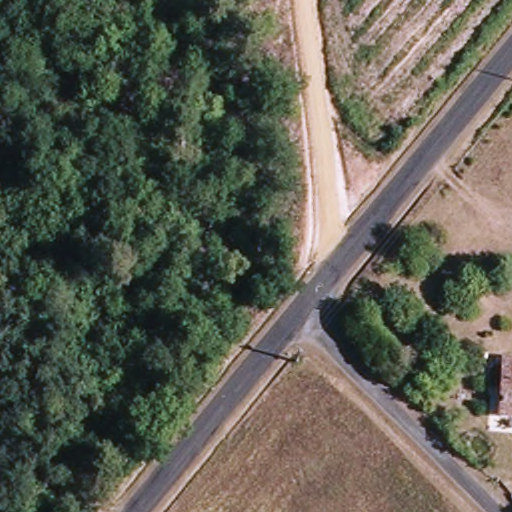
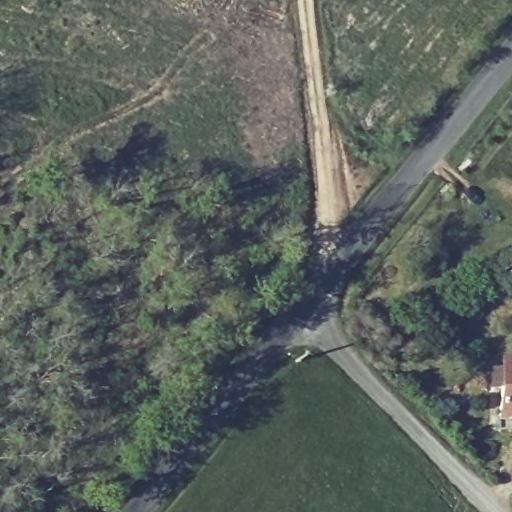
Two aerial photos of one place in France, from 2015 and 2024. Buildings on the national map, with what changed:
unchanged [(505,358),(512,359),(512,420),(497,419),(505,358)]

